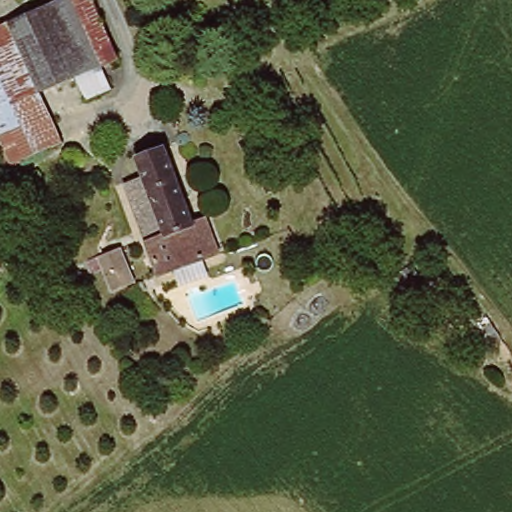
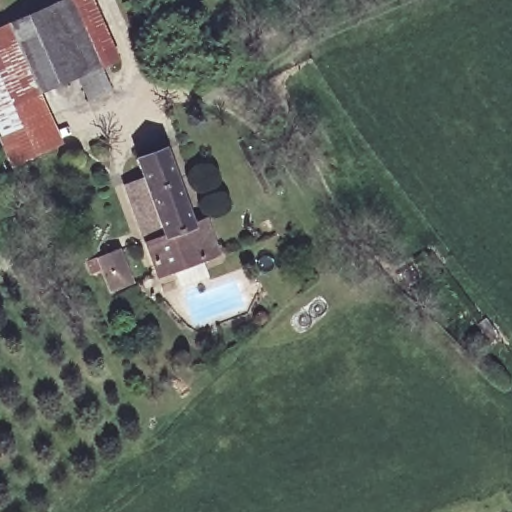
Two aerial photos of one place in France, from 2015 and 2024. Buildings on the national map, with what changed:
unchanged [(128,49),(108,59),(120,85),(96,96),(83,67),(43,85),(66,141),(48,151),(0,46),(0,24),(53,0),(104,0),(128,49)]
unchanged [(0,122),(0,46),(48,151),(18,165),(0,122)]
unchanged [(128,191),(148,183),(138,158),(168,146),(188,196),(198,194),(222,251),(183,270),(164,277),(151,245),(128,191)]

